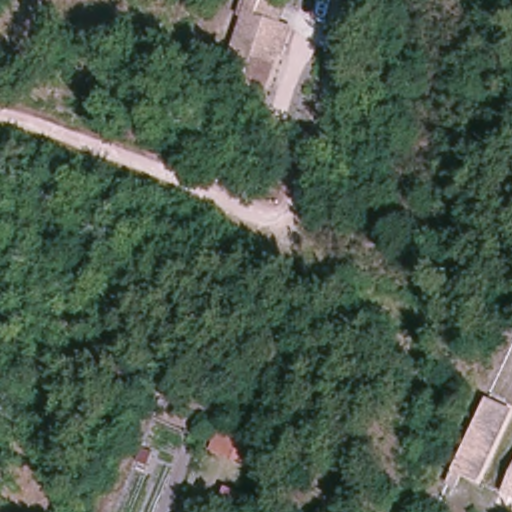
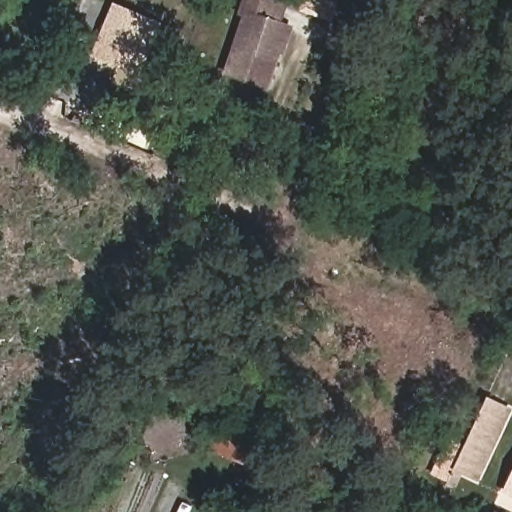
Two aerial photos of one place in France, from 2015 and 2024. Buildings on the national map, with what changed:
unchanged [(245,19),(237,14),(242,0),(261,0),(256,15),(288,29),(281,47),(276,46),(261,85),(223,72),(245,19)]
new [(121,5),(162,26),(140,73),(99,51),(121,5)]
unchanged [(511,415),(482,481),(460,472),(489,403),(511,415)]
unchanged [(223,453),(211,448),(220,423),(230,427),(259,438),(249,464),(223,453)]
unchanged [(512,482),(512,497),(507,495),(512,482)]

